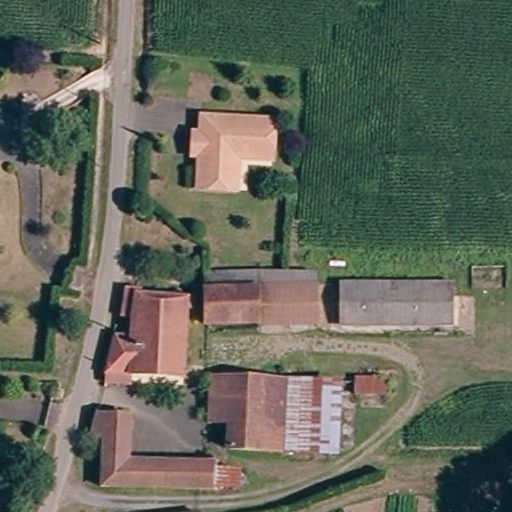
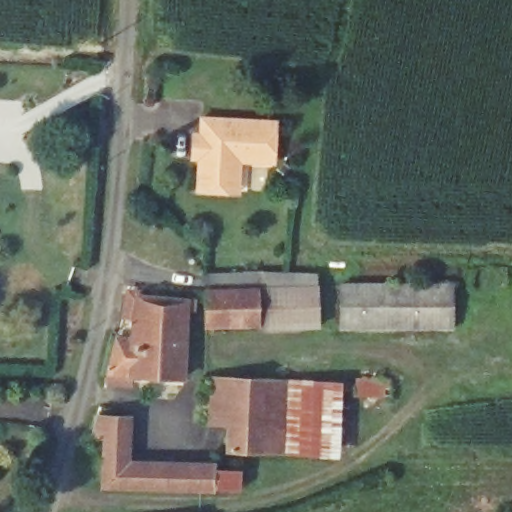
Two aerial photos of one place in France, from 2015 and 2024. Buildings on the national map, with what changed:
unchanged [(279,127),(277,167),(241,165),(234,172),(233,197),(203,195),(205,162),(209,162),(210,142),(206,142),(207,124),(279,127)]
unchanged [(206,142),(205,162),(198,162),(199,141),(206,142)]
unchanged [(318,310),(260,311),(261,323),(207,325),(206,290),(205,275),(241,273),(241,287),(241,289),(317,287),(318,310)]
unchanged [(452,326),(340,326),(340,283),(452,283),(452,326)]
unchanged [(108,382),(109,372),(116,340),(117,339),(117,338),(131,337),(136,296),(195,298),(195,308),(187,308),(186,323),(184,375),(131,372),(130,383),(108,382)]
unchanged [(392,377),(391,392),(361,391),(362,375),(392,377)]
unchanged [(284,451),(234,449),(235,425),(214,424),(215,377),(236,378),(286,380),(284,451)]
unchanged [(336,382),(334,452),(284,451),(286,380),(336,382)]
unchanged [(217,467),(215,492),(101,486),(102,461),(104,438),(91,438),(97,417),(97,416),(98,415),(131,416),(131,417),(129,438),(128,462),(217,467)]

